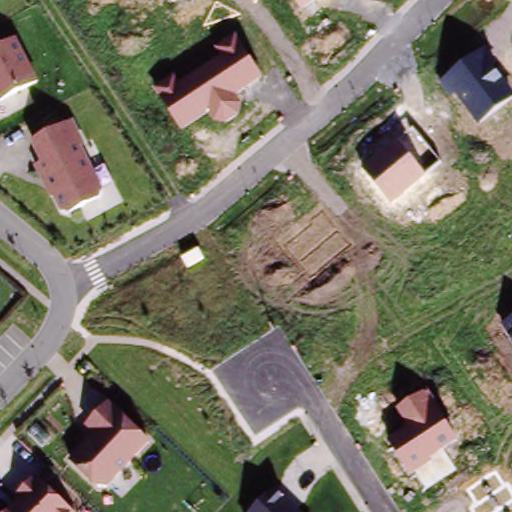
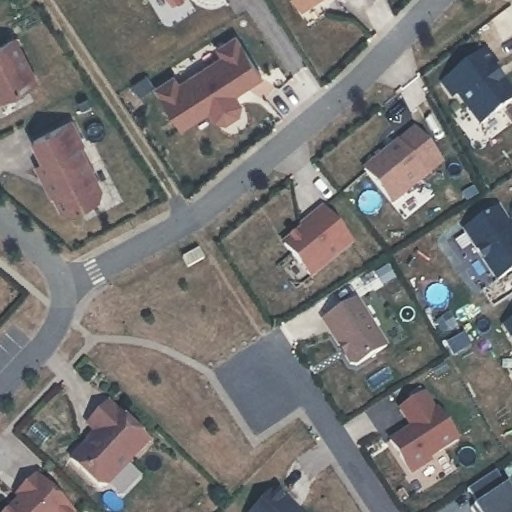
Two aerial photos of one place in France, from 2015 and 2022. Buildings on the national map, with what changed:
unchanged [(302,8),(296,0),(314,0),(302,8)]
unchanged [(37,81),(0,101),(0,43),(15,35),(37,81)]
unchanged [(172,76),(175,81),(219,55),(217,50),(237,37),(260,74),(237,92),(242,102),(242,112),(227,122),(217,122),(210,114),(181,130),(153,87),(172,76)]
unchanged [(512,92),(512,100),(480,122),(459,95),(453,99),(443,80),(483,54),(512,92)]
unchanged [(86,144),(82,147),(103,191),(100,199),(70,216),(59,214),(54,202),(50,201),(32,166),(38,163),(28,142),(70,119),(86,144)]
unchanged [(400,142),(427,175),(392,203),(365,170),(400,142)]
new [(355,244),(312,281),(281,244),(295,232),(292,229),(321,205),(355,244)]
new [(508,222),(512,229),(512,270),(494,282),(462,231),(496,209),(505,224),(508,222)]
new [(354,300),(384,348),(354,367),(347,366),(342,356),(343,355),(338,347),(337,347),(320,322),(354,300)]
unchanged [(512,340),(502,324),(512,318),(512,340)]
unchanged [(408,427),(397,410),(427,391),(457,438),(431,457),(433,462),(412,476),(392,440),(408,427)]
unchanged [(152,441),(108,489),(98,488),(65,460),(90,433),(83,426),(107,403),(152,441)]
new [(512,494),(512,512),(478,512),(473,506),(477,502),(468,488),(495,471),(506,485),(512,494)]
unchanged [(2,512),(15,498),(12,497),(35,473),(73,512),(2,512)]
unchanged [(299,512),(251,512),(275,490),(299,512)]

